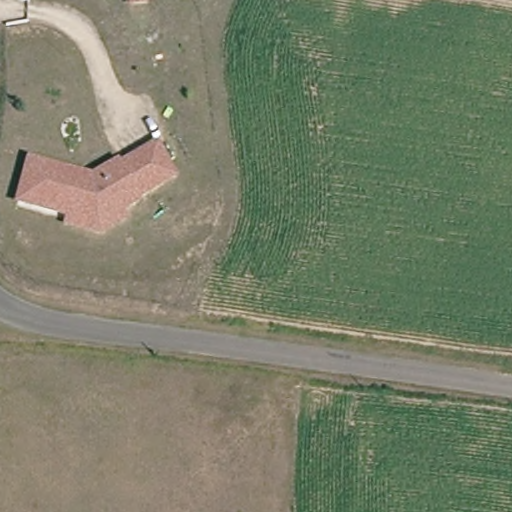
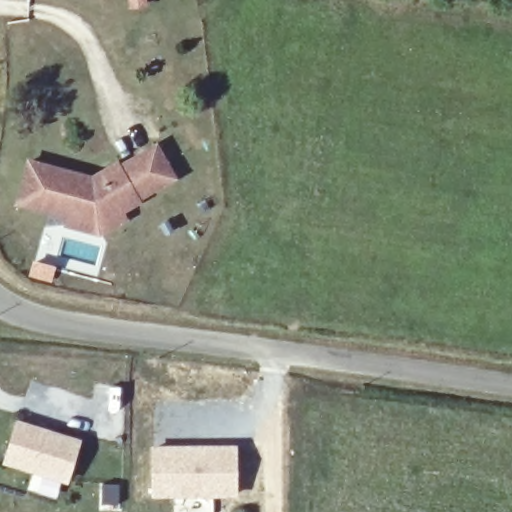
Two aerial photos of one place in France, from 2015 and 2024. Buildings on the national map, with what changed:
unchanged [(100,232),(67,222),(70,215),(19,200),(30,159),(72,171),(93,176),(118,162),(120,166),(157,145),(175,176),(139,197),(140,200),(122,210),(126,217),(100,232)]
new [(81,439),(68,481),(2,462),(16,418),(81,439)]
new [(238,445),(239,496),(151,497),(151,446),(238,445)]

